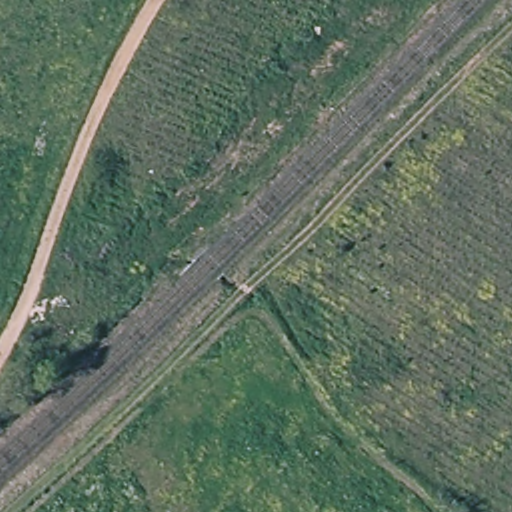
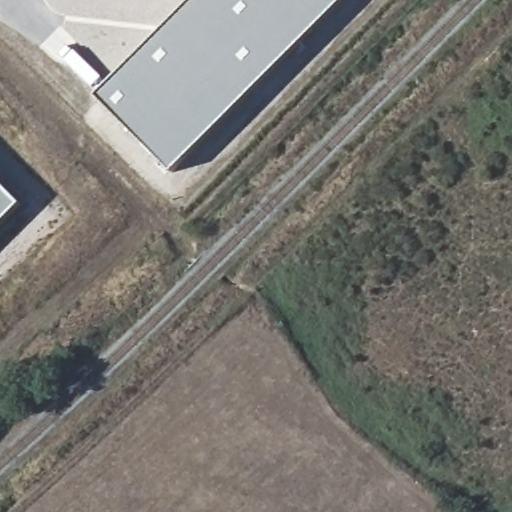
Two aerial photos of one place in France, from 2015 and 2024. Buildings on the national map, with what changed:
new [(343,0),(171,173),(95,97),(192,0),(343,0)]
new [(0,223),(0,185),(19,204),(0,223)]

